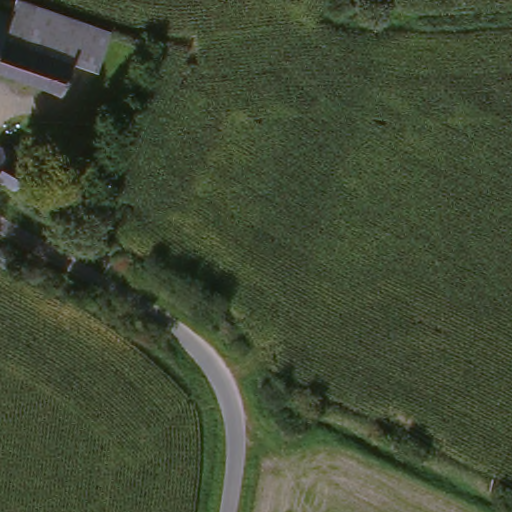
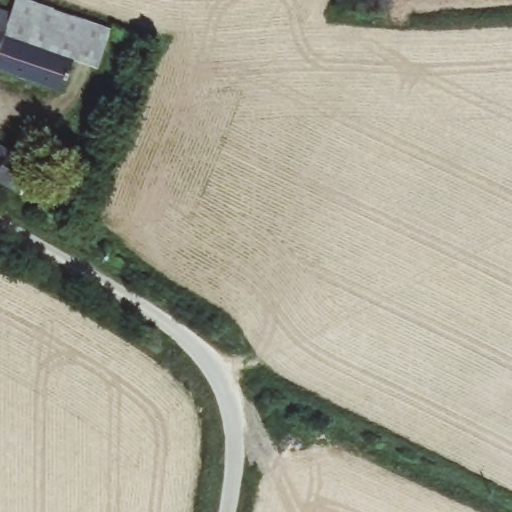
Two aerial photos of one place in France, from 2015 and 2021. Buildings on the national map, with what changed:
unchanged [(15,0),(45,0),(109,23),(96,60),(73,52),(4,29),(13,6),(15,0)]
unchanged [(73,52),(60,84),(0,62),(0,2),(13,6),(4,29),(73,52)]
unchanged [(0,158),(3,151),(33,167),(23,191),(0,179),(0,158)]

